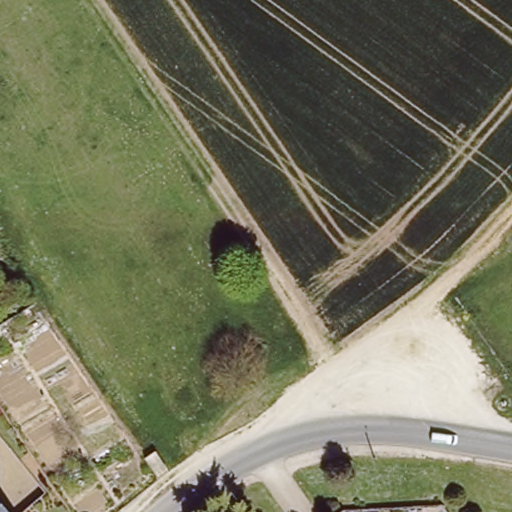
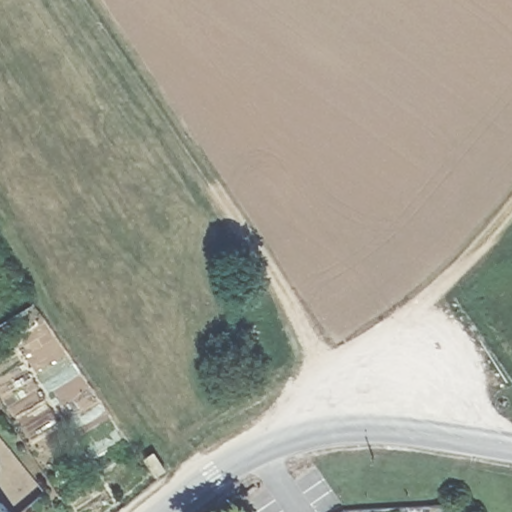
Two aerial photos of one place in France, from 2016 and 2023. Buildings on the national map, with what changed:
unchanged [(8,512),(0,512),(0,503),(8,512)]
unchanged [(342,510),(344,512),(339,512),(342,510)]

